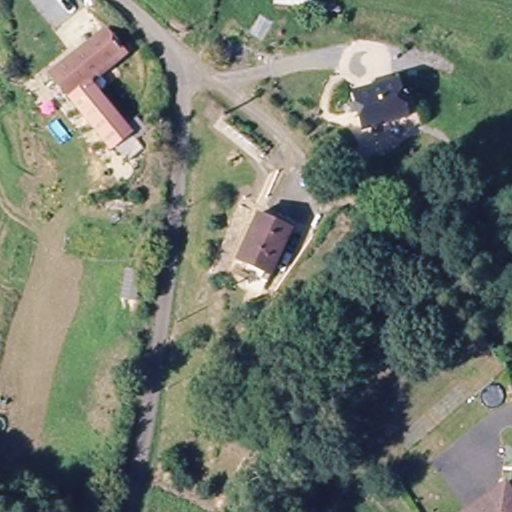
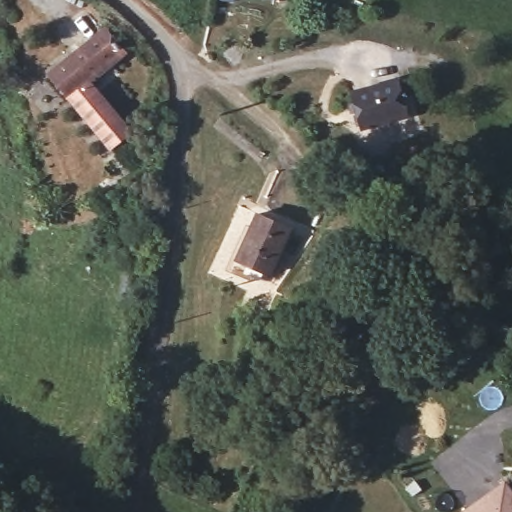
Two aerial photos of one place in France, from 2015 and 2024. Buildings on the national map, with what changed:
unchanged [(112,143),(48,85),(97,24),(121,46),(90,82),(139,125),(135,129),(117,147),(112,143)]
unchanged [(399,80),(407,117),(357,127),(350,90),(399,80)]
unchanged [(294,231),(273,275),(258,268),(254,281),(237,273),(229,268),(244,229),(257,234),(264,217),(294,231)]
unchanged [(507,482),(512,489),(512,512),(463,512),(507,482)]

